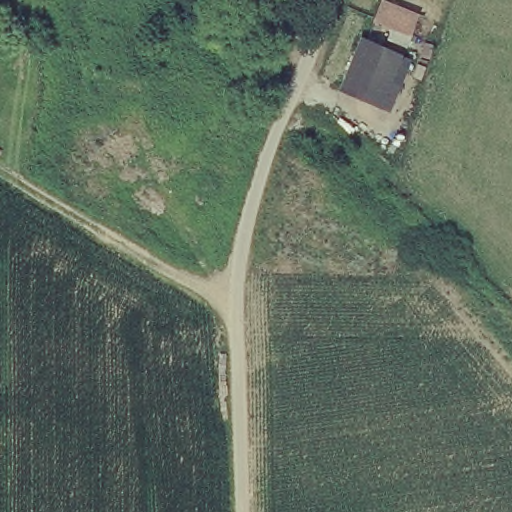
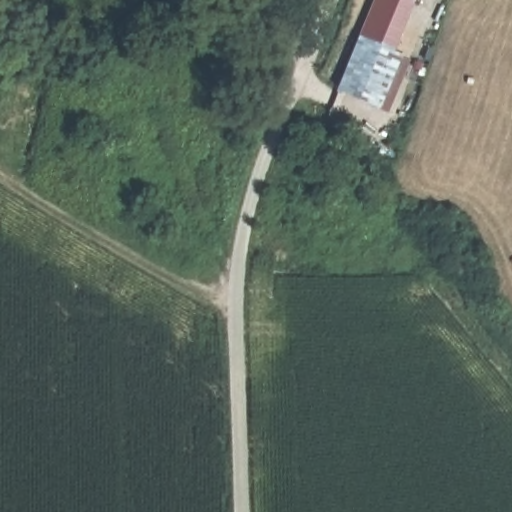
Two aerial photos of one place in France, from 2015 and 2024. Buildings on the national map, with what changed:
unchanged [(342,91),(359,44),(383,1),(420,18),(402,59),(410,63),(390,112),(342,91)]

